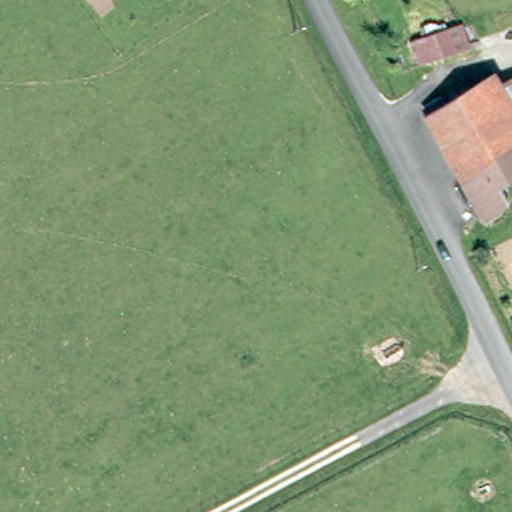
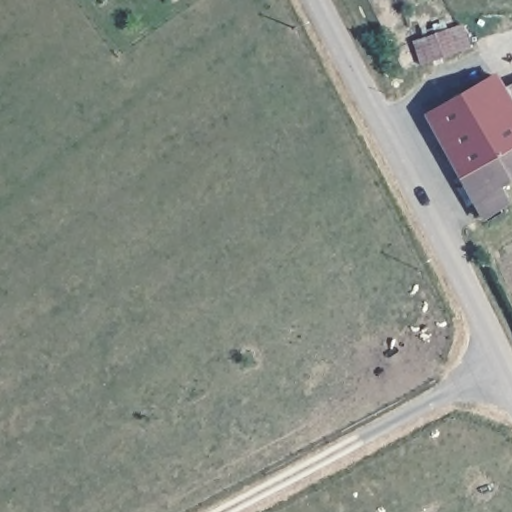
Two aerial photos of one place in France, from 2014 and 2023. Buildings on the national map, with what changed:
unchanged [(417,44),(465,26),(476,50),(425,67),(417,44)]
unchanged [(509,205),(485,220),(424,112),(437,103),(441,109),(495,79),(505,95),(512,107),(512,179),(497,187),(509,205)]
unchanged [(512,91),(512,107),(505,95),(512,91)]

